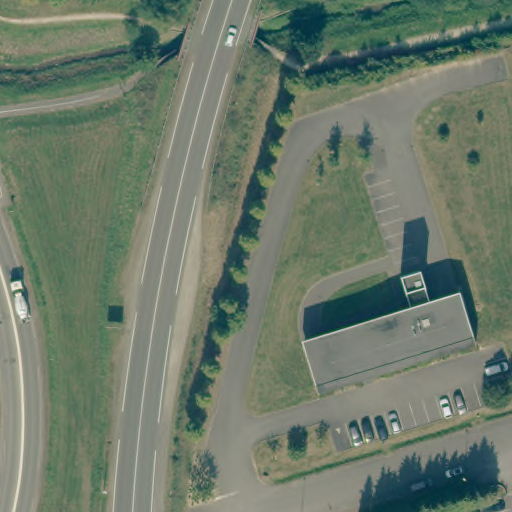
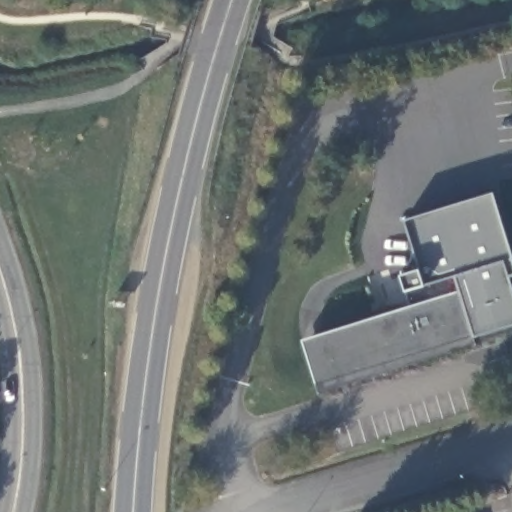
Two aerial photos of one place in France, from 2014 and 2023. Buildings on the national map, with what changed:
new [(512,256),(512,276),(509,277),(512,288),(512,326),(475,338),(462,295),(432,304),(429,297),(420,267),(418,267),(405,222),(493,195),(512,256)]
unchanged [(303,343),(412,310),(410,303),(400,273),(420,267),(429,297),(432,304),(462,295),(476,342),(318,390),(303,343)]

